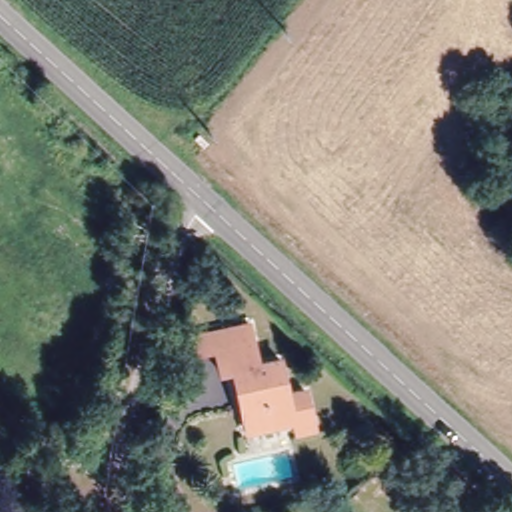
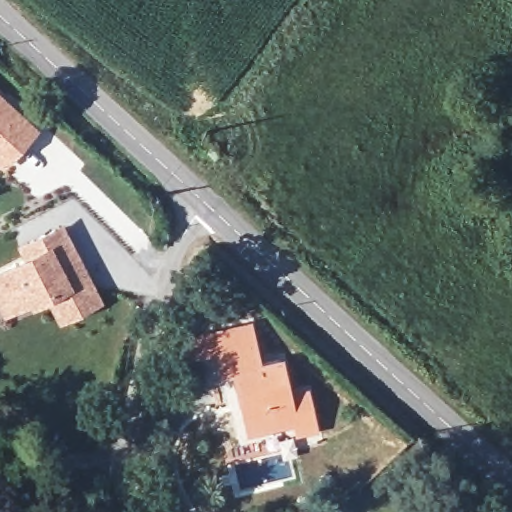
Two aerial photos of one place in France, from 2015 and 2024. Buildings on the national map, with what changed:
new [(2,168),(0,166),(0,91),(39,127),(2,168)]
new [(22,255),(16,245),(62,220),(104,300),(59,324),(46,298),(30,306),(28,302),(2,315),(0,310),(0,266),(22,255)]
unchanged [(292,412),(254,420),(244,422),(231,361),(222,363),(216,338),(190,344),(187,331),(214,326),(249,318),(257,355),(279,351),(286,386),(305,383),(310,408),(312,419),(295,423),(292,412)]

